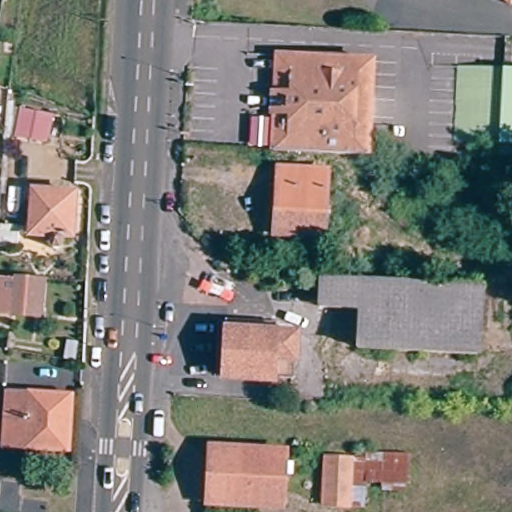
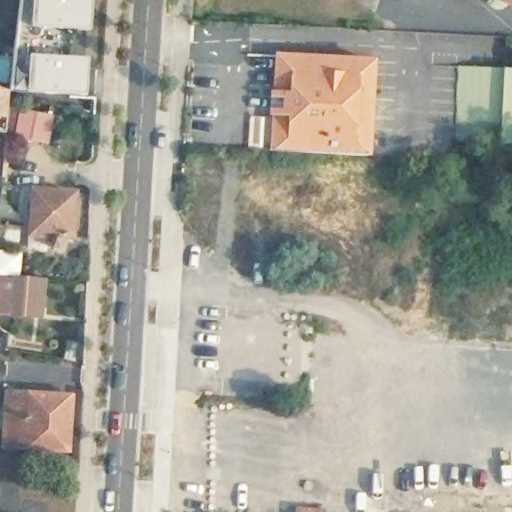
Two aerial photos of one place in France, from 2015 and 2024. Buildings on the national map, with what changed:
new [(86,95),(27,92),(10,91),(21,0),(91,0),(86,95)]
unchanged [(500,13),(489,0),(512,0),(512,3),(500,13)]
unchanged [(352,156),(270,152),(276,58),(375,62),(369,157),(352,156)]
unchanged [(451,71),(512,74),(512,145),(496,145),(448,143),(451,71)]
unchanged [(52,143),(4,134),(5,109),(5,105),(57,115),(52,143)]
unchanged [(496,145),(512,145),(512,165),(495,164),(496,145)]
demolished [(274,231),(281,169),(327,172),(322,234),(274,231)]
unchanged [(60,232),(59,237),(59,238),(59,239),(58,240),(57,241),(57,242),(56,243),(55,244),(54,244),(53,244),(52,244),(51,244),(50,244),(48,244),(47,243),(46,242),(45,241),(44,240),(44,239),(44,238),(44,237),(44,231),(25,230),(27,185),(70,188),(67,233),(60,232)]
unchanged [(17,243),(0,242),(0,220),(17,221),(17,243)]
unchanged [(40,314),(31,313),(0,311),(0,277),(13,278),(13,275),(30,276),(33,276),(34,276),(42,277),(40,314)]
demolished [(352,352),(357,311),(317,308),(319,280),(338,281),(412,285),(408,353),(352,352)]
demolished [(472,355),(408,353),(412,285),(475,289),(472,355)]
unchanged [(255,325),(276,325),(273,337),(297,339),(291,386),(273,384),(272,388),(221,380),(223,361),(226,332),(227,324),(255,325)]
unchanged [(2,447),(5,391),(70,395),(67,451),(2,447)]
demolished [(203,503),(211,452),(282,457),(278,510),(203,503)]
demolished [(328,506),(331,458),(362,459),(362,457),(403,460),(402,490),(367,489),(356,488),(353,507),(328,506)]

